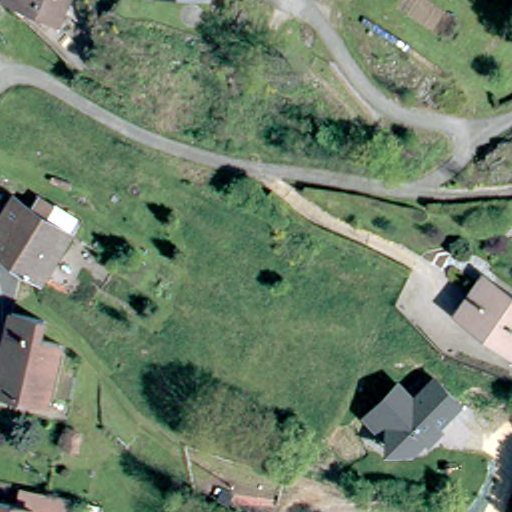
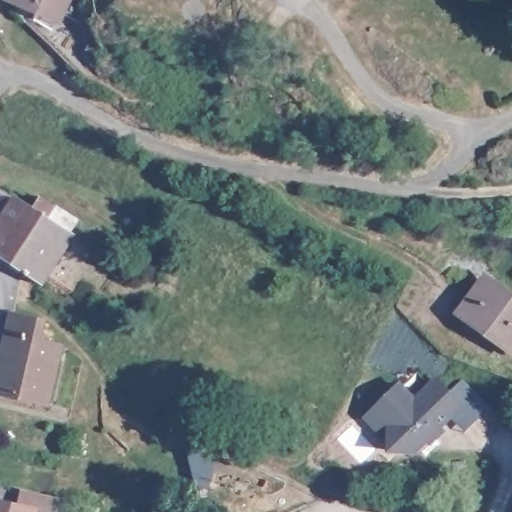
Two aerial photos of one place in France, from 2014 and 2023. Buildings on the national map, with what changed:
unchanged [(64,22),(25,5),(26,2),(22,0),(74,0),(64,22)]
unchanged [(34,212),(37,214),(34,220),(47,228),(54,217),(72,229),(65,240),(69,242),(62,254),(39,292),(7,272),(0,267),(0,222),(9,206),(26,216),(30,210),(34,212)]
unchanged [(488,287),(512,303),(512,348),(467,317),(487,287),(488,287)]
unchanged [(62,347),(50,407),(0,394),(0,381),(9,339),(14,317),(45,325),(42,342),(62,347)]
unchanged [(400,380),(414,393),(434,374),(464,407),(412,457),(386,456),(384,442),(362,417),(400,381),(400,380)]
unchanged [(65,446),(70,430),(84,432),(79,450),(65,446)]
unchanged [(19,495),(44,501),(69,506),(67,512),(0,512),(0,507),(15,510),(19,495)]

